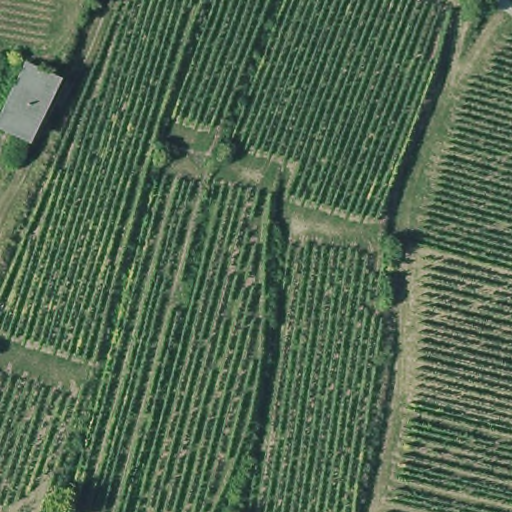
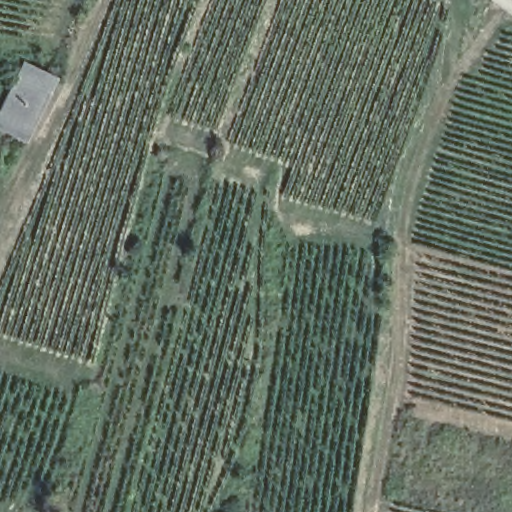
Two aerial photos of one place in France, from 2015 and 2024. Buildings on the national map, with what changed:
unchanged [(24,141),(0,130),(0,118),(24,67),(53,79),(24,141)]

